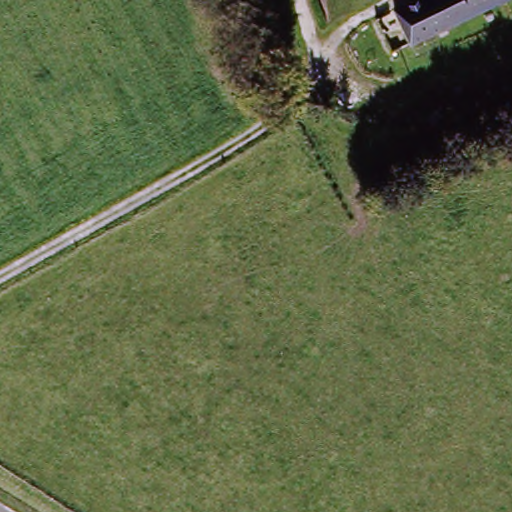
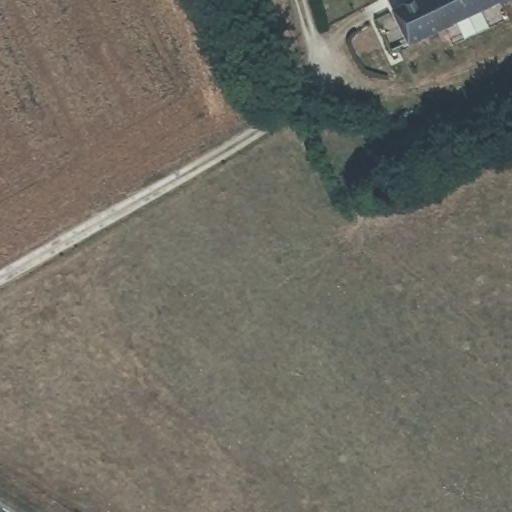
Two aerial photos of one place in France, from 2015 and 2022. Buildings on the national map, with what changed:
unchanged [(403,0),(503,0),(405,47),(387,8),(403,0)]

